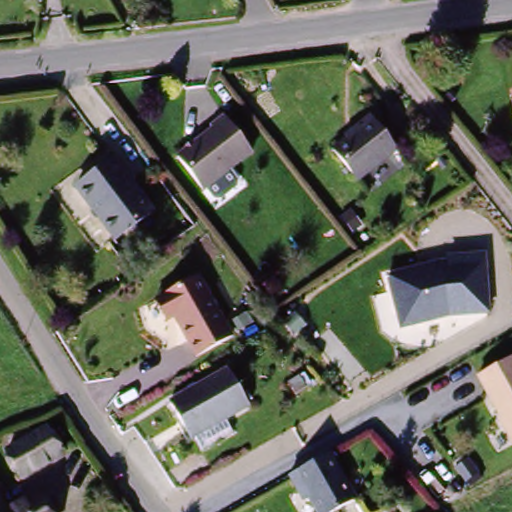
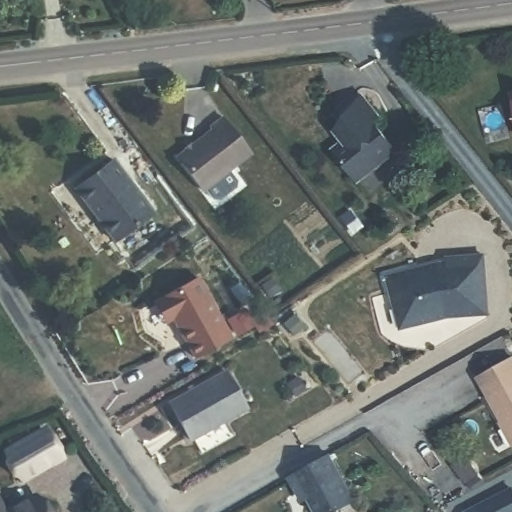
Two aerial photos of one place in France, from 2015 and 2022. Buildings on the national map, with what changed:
unchanged [(512,93),(512,101),(510,93),(512,93)]
unchanged [(367,109),(393,142),(354,176),(328,145),(350,127),(348,124),(367,109)]
unchanged [(176,153),(211,126),(211,124),(224,115),(251,151),(203,188),(176,153)]
unchanged [(71,187),(110,156),(151,208),(112,239),(94,216),(85,204),(71,187)]
unchanged [(406,326),(392,275),(423,266),(425,271),(436,267),(435,262),(452,259),(452,254),(488,251),(493,309),(457,313),(441,316),(406,326)]
unchanged [(225,340),(190,361),(167,321),(163,324),(160,325),(148,304),(151,302),(191,280),(225,340)]
unchanged [(512,358),(512,442),(475,377),(512,358)]
unchanged [(219,371),(240,407),(183,439),(162,403),(219,371)]
unchanged [(45,431),(60,457),(21,479),(6,452),(45,431)]
unchanged [(351,503),(335,512),(311,512),(300,491),(295,493),(286,477),(326,457),(351,503)]
new [(512,487),(512,512),(465,512),(463,509),(510,484),(512,487)]
unchanged [(0,510),(29,494),(39,512),(0,512),(0,509),(0,510)]

